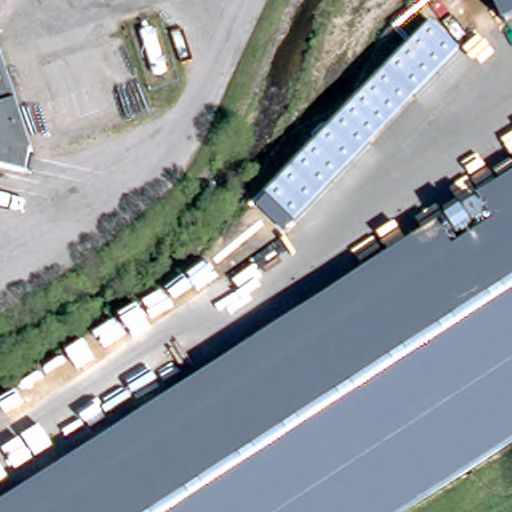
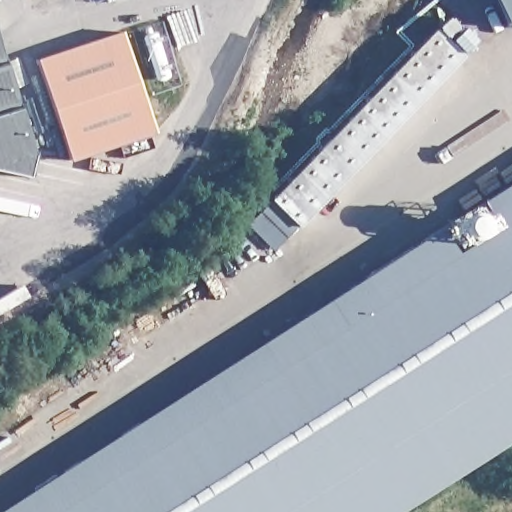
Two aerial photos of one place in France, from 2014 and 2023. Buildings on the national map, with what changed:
unchanged [(505,30),(491,0),(512,0),(512,26),(505,30)]
unchanged [(268,199),(434,26),(463,55),(295,226),(285,235),(259,210),(268,199)]
unchanged [(0,62),(0,31),(11,62),(2,62),(0,62)]
new [(122,31),(154,132),(70,161),(35,60),(122,31)]
unchanged [(1,158),(0,162),(0,62),(2,62),(11,62),(43,151),(35,166),(1,158)]
unchanged [(400,512),(2,512),(512,184),(512,440),(400,512)]

